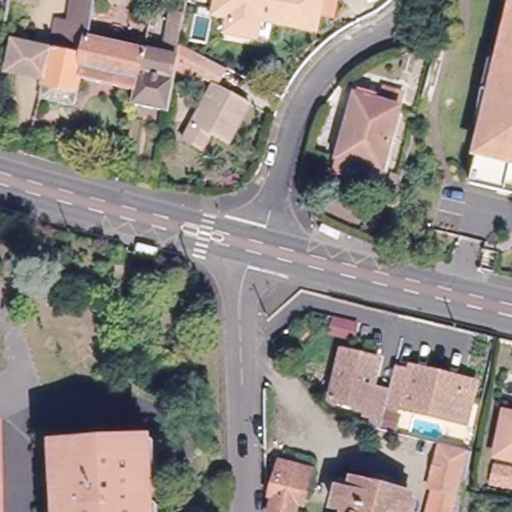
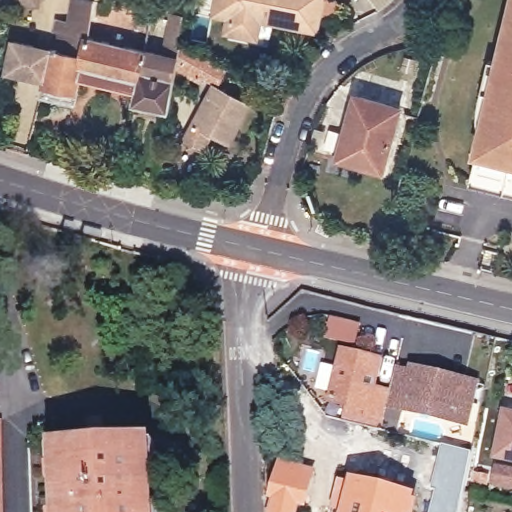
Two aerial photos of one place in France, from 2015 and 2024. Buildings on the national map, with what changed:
unchanged [(41,94),(43,81),(44,76),(7,67),(14,37),(50,45),(57,17),(71,20),(75,0),(97,0),(89,38),(165,54),(175,15),(185,17),(181,39),(168,106),(135,99),(137,84),(81,72),(77,88),(75,101),(41,94)]
unchanged [(316,28),(259,17),(256,32),(229,26),(232,7),(217,3),(217,0),(322,0),(316,28)]
unchanged [(487,88),(493,59),(505,62),(512,33),(512,193),(475,183),(487,134),(483,134),(482,115),(487,88)]
unchanged [(218,78),(250,97),(229,132),(212,122),(197,146),(180,136),(211,81),(182,64),(192,46),(227,65),(218,78)]
unchanged [(340,163),(343,148),(360,88),(405,99),(389,161),(367,156),(365,171),(340,163)]
unchanged [(372,412),(367,410),(369,402),(332,394),(344,344),(383,354),(376,380),(392,383),(388,400),(382,424),(370,421),(372,412)]
unchanged [(467,419),(457,417),(388,400),(392,383),(396,364),(412,368),(414,363),(465,376),(476,379),(467,419)]
unchanged [(402,412),(398,426),(385,422),(389,408),(402,412)]
unchanged [(492,449),(501,409),(512,412),(512,454),(492,449)]
unchanged [(56,485),(55,449),(149,446),(151,483),(141,483),(142,509),(152,509),(152,512),(66,512),(66,485),(56,485)]
unchanged [(424,493),(431,463),(434,448),(463,456),(461,470),(457,492),(455,500),(452,512),(425,512),(429,495),(424,493)]
unchanged [(306,499),(300,498),(296,512),(271,512),(276,492),(272,491),(280,459),(313,466),(306,499)]
unchanged [(328,512),(333,488),(346,490),(346,489),(367,493),(370,483),(386,486),(383,498),(402,502),(401,512),(328,512)]

